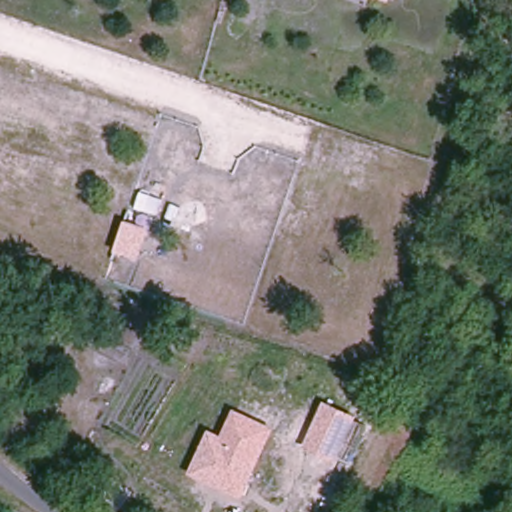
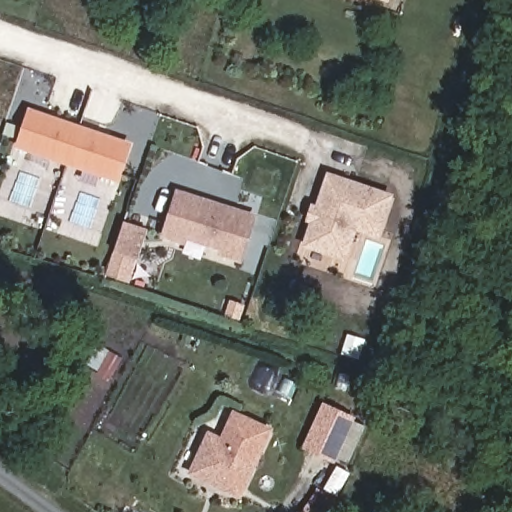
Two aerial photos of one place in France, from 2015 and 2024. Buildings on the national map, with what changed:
new [(34,112),(134,144),(123,177),(23,145),(34,112)]
new [(302,249),(310,223),(306,222),(311,205),(316,207),(327,173),(394,194),(379,240),(355,232),(346,262),(302,249)]
new [(218,256),(219,250),(185,241),(184,245),(160,239),(175,188),(258,214),(242,264),(218,256)]
new [(138,260),(115,253),(125,223),(148,230),(138,260)]
unchanged [(336,459),(301,444),(322,402),(356,416),(336,459)]
unchanged [(244,497),(190,472),(209,428),(220,434),(231,410),(276,429),(244,497)]

